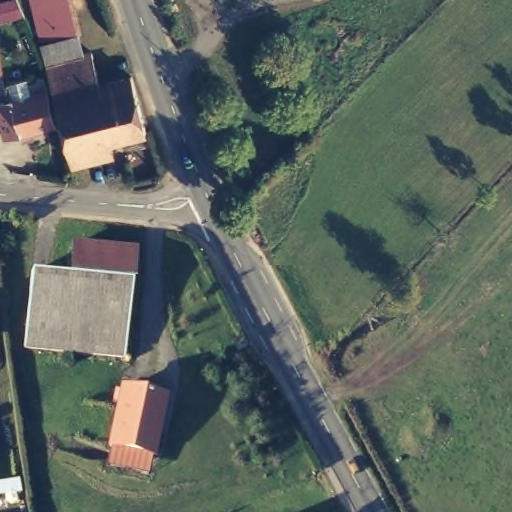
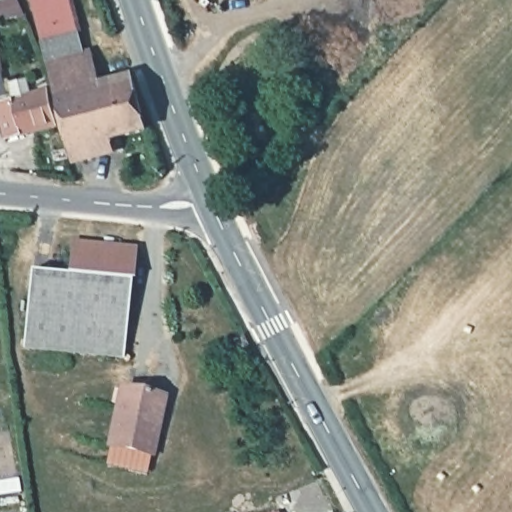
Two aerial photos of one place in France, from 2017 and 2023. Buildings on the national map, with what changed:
unchanged [(34,35),(17,39),(8,1),(14,0),(25,0),(28,8),(34,35)]
unchanged [(80,156),(77,156),(50,55),(35,0),(73,0),(93,70),(100,68),(103,79),(135,70),(150,123),(76,143),(80,156)]
unchanged [(50,86),(59,120),(10,133),(1,97),(50,86)]
unchanged [(66,235),(129,239),(127,267),(127,269),(83,266),(72,265),(68,265),(65,264),(66,244),(66,235)]
unchanged [(72,268),(72,265),(83,266),(127,269),(127,267),(132,267),(125,351),(28,346),(33,266),(72,268)]
unchanged [(163,397),(154,457),(112,452),(121,392),(163,397)]

